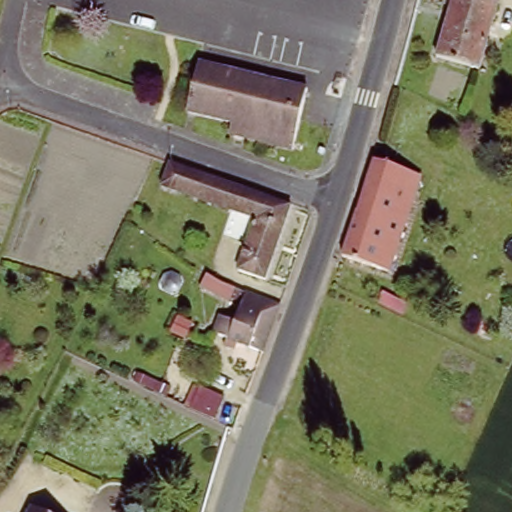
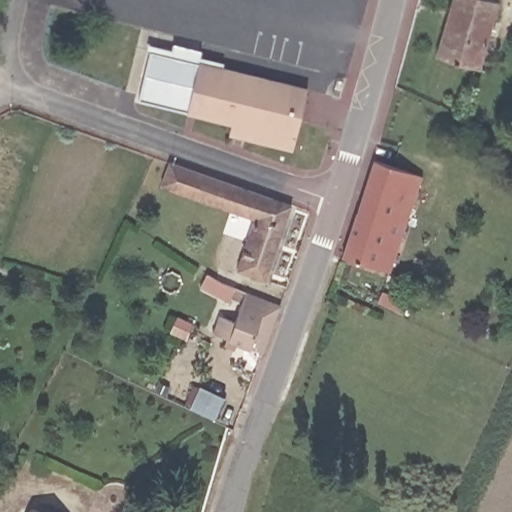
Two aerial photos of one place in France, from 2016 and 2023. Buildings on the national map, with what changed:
unchanged [(478,0),(495,4),(477,71),(435,60),(452,0),(478,0)]
new [(150,54),(146,53),(149,44),(174,50),(175,45),(202,51),(200,57),(224,63),(222,69),(199,64),(188,114),(139,101),(150,54)]
unchanged [(199,64),(307,90),(293,151),(230,137),(234,124),(188,114),(199,64)]
unchanged [(349,210),(365,155),(412,169),(390,246),(400,249),(394,269),(335,251),(349,210)]
unchanged [(167,165),(288,207),(262,279),(235,270),(254,218),(160,187),(167,165)]
unchanged [(217,322),(232,327),(241,304),(232,300),(235,290),(276,306),(259,356),(212,338),(217,322)]
unchanged [(308,427),(318,432),(314,441),(304,437),(308,427)]
unchanged [(34,509),(39,512),(33,512),(34,509)]

